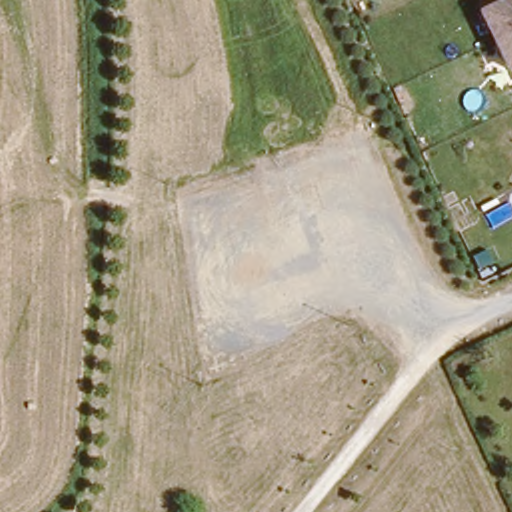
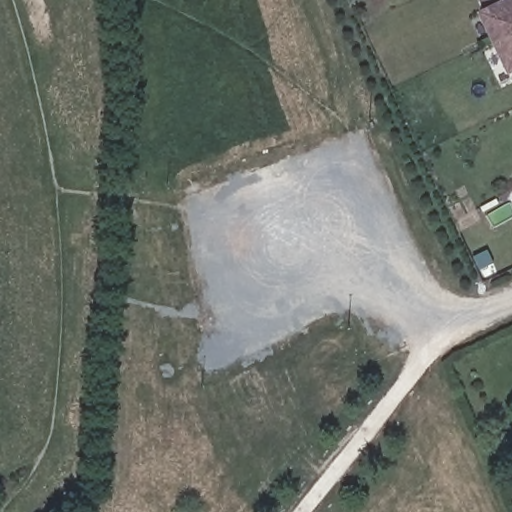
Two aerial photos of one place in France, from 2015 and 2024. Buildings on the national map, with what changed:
unchanged [(477,9),(482,6),(480,0),(512,0),(512,68),(507,71),(477,9)]

